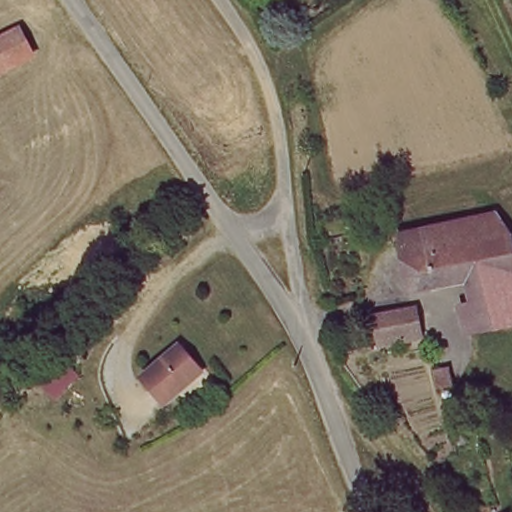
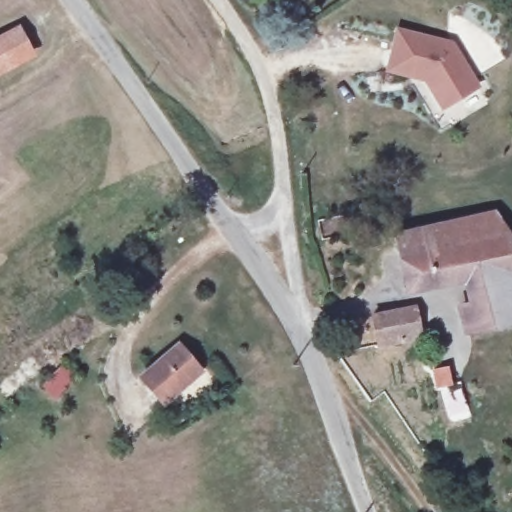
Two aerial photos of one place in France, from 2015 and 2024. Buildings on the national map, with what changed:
new [(397,26),(454,40),(481,88),(442,110),(425,81),(388,73),(397,26)]
unchanged [(31,59),(0,75),(0,42),(16,33),(31,59)]
unchanged [(497,239),(512,304),(512,322),(469,330),(460,298),(473,297),(469,279),(410,288),(399,234),(491,215),(510,232),(511,237),(497,239)]
unchanged [(512,242),(512,304),(497,239),(511,237),(512,242)]
unchanged [(413,309),(420,342),(378,348),(372,317),(413,309)]
unchanged [(177,351),(195,372),(161,401),(142,379),(177,351)]
unchanged [(443,380),(448,398),(434,403),(431,382),(443,380)]

